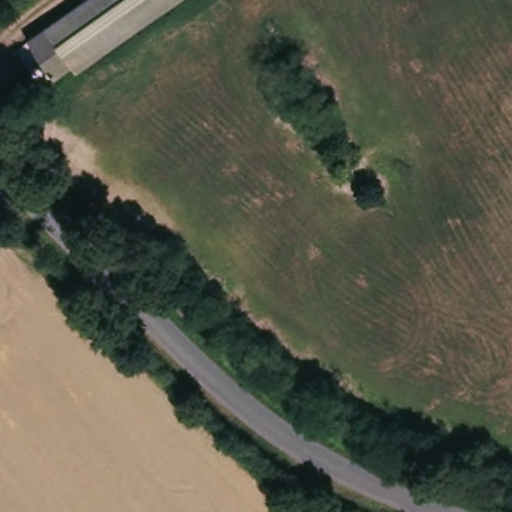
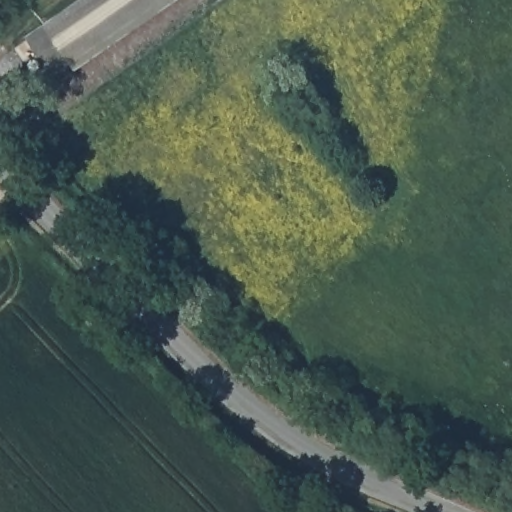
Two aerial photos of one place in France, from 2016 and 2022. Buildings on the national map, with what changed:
unchanged [(165,0),(63,71),(38,35),(88,0),(165,0)]

